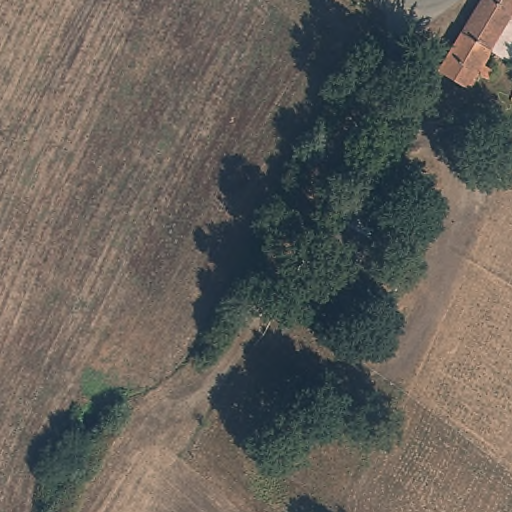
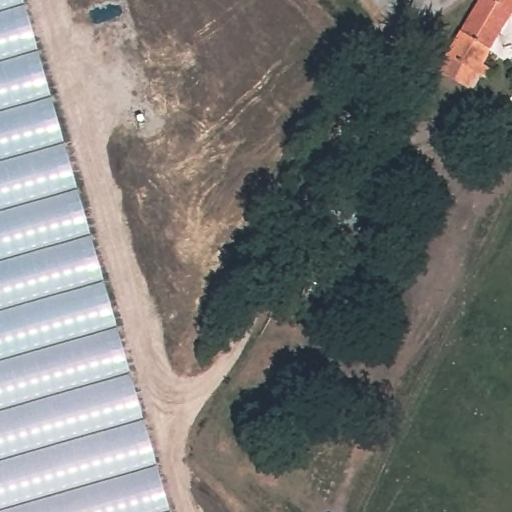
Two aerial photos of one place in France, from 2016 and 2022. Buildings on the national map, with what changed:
new [(0,512),(0,0),(24,0),(171,512),(0,512)]
unchanged [(441,69),(451,52),(450,51),(482,0),(512,0),(512,18),(487,60),(496,67),(489,77),(478,70),(467,87),(441,69)]
unchanged [(332,297),(294,274),(327,217),(366,239),(332,297)]

